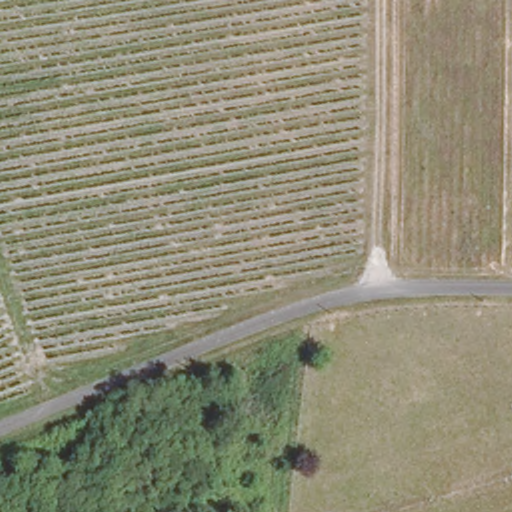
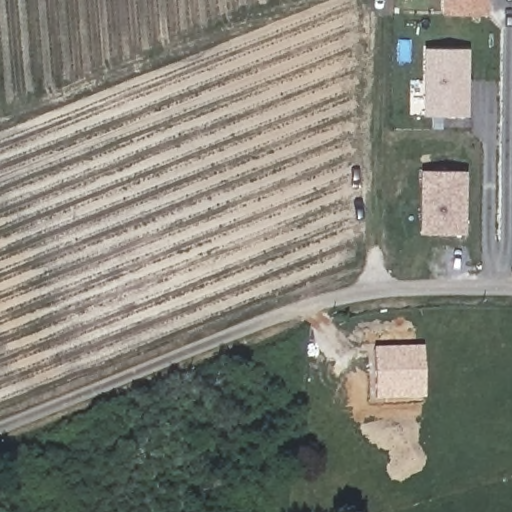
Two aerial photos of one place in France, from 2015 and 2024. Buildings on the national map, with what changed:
new [(490,0),(490,16),(447,15),(447,0),(490,0)]
new [(472,50),(472,119),(430,118),(429,50),(472,50)]
new [(423,172),(466,173),(466,236),(423,235),(423,172)]
new [(376,399),(373,348),(423,346),(424,397),(376,399)]

